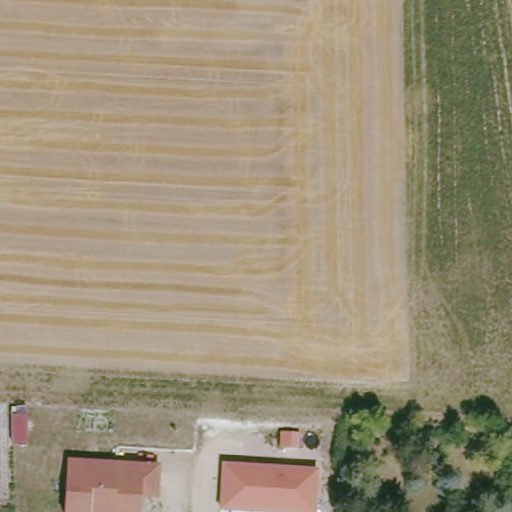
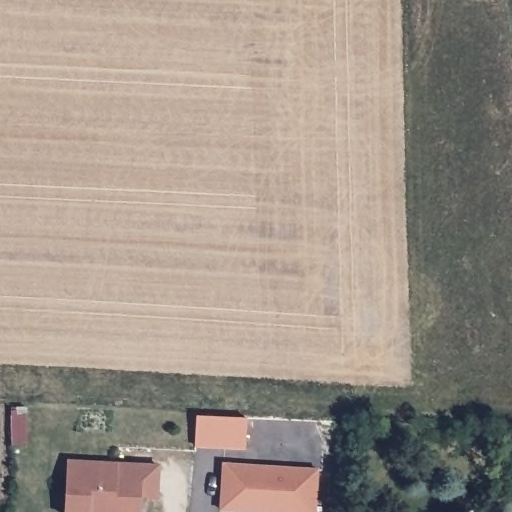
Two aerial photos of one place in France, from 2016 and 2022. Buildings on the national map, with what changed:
new [(246,420),(244,451),(194,448),(196,418),(246,420)]
unchanged [(162,467),(160,500),(142,498),(142,512),(68,512),(70,461),(162,467)]
unchanged [(322,470),(319,512),(230,512),(222,512),(224,464),(322,470)]
unchanged [(510,505),(512,473),(512,504),(510,505)]

